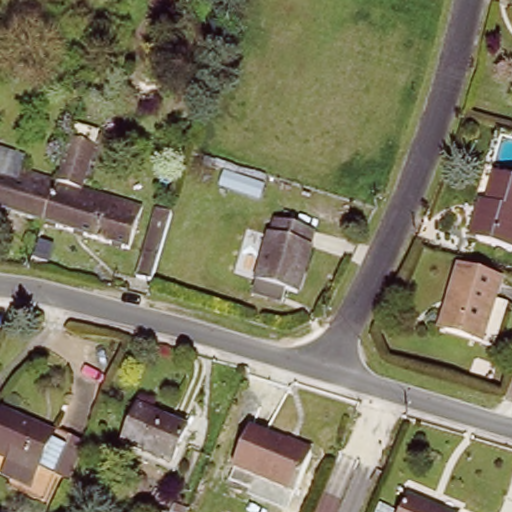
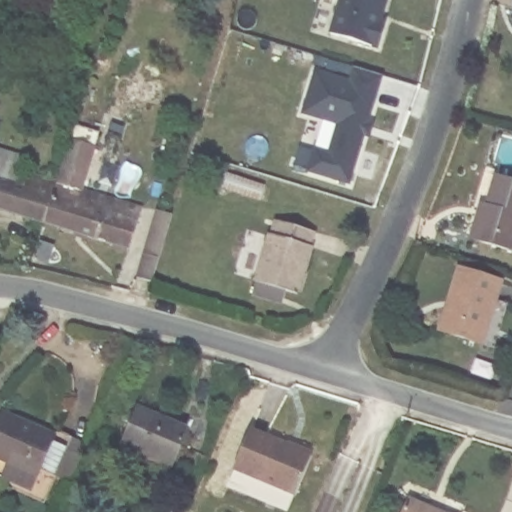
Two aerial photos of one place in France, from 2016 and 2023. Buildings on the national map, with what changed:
new [(340,0),(388,0),(382,19),(388,20),(379,50),(331,33),(340,0)]
new [(370,121),(376,124),(371,140),(364,137),(351,185),(306,172),(308,168),(293,165),(296,154),(311,158),(314,146),(329,151),(338,124),(301,114),(316,70),(351,80),(354,65),(384,74),(370,121)]
unchanged [(74,125),(103,132),(92,166),(64,159),(74,125)]
unchanged [(44,225),(0,211),(0,152),(26,160),(23,173),(56,184),(45,220),(44,225)]
unchanged [(85,189),(141,206),(128,245),(45,220),(56,184),(64,159),(92,166),(85,189)]
unchanged [(477,240),(497,180),(512,185),(512,252),(477,240)]
unchanged [(138,280),(158,213),(176,219),(156,285),(138,280)]
unchanged [(276,219),(313,230),(294,289),(257,276),(276,219)]
unchanged [(479,342),(442,330),(461,271),(498,283),(479,342)]
unchanged [(193,430),(173,469),(123,445),(142,407),(193,430)]
unchanged [(56,435),(31,493),(1,480),(8,465),(0,462),(0,416),(1,414),(56,435)]
unchanged [(256,430),(314,456),(297,494),(237,467),(256,430)]
unchanged [(412,500),(437,512),(406,512),(412,500)]

